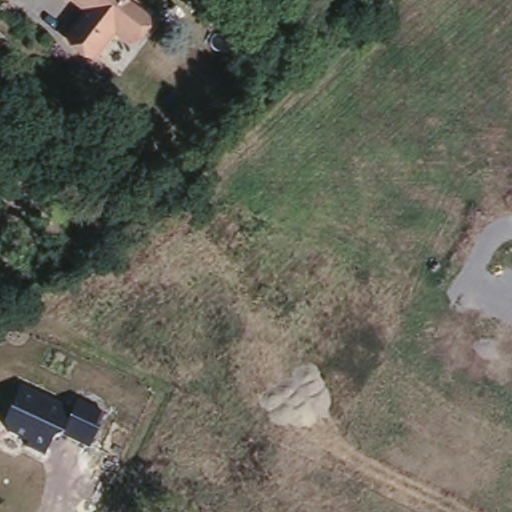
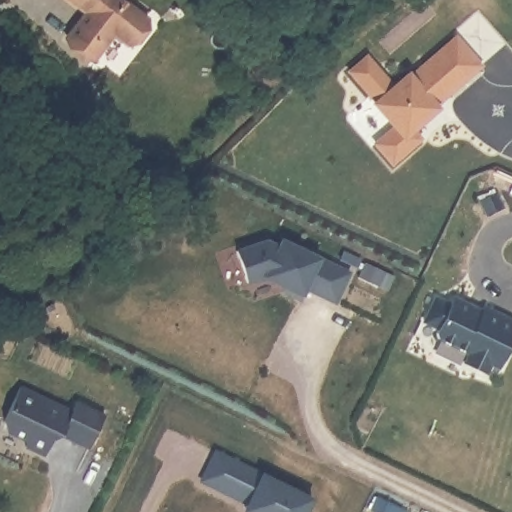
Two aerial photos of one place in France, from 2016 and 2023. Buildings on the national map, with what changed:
unchanged [(141,10),(122,36),(109,25),(88,53),(58,32),(83,0),(128,0),(141,10)]
new [(436,108),(438,111),(413,132),(421,141),(393,165),(376,145),(395,129),(376,105),(377,104),(352,73),(369,59),(394,90),(409,77),(412,80),(456,43),(458,43),(481,70),(436,108)]
new [(352,276),(337,306),(307,292),(304,298),(266,281),(249,287),(238,255),(268,245),(281,250),(284,244),(352,276)]
new [(496,368),(487,363),(482,373),(461,363),(466,353),(435,338),(434,333),(436,328),(421,321),(433,297),(448,305),(450,300),(478,314),(481,307),(512,323),(512,335),(496,368)]
unchanged [(59,436),(52,437),(44,456),(24,448),(26,442),(1,430),(21,388),(73,410),(76,403),(105,416),(88,449),(59,436)]
new [(315,498),(309,512),(245,512),(242,510),(247,500),(201,479),(214,449),(263,473),(315,498)]

